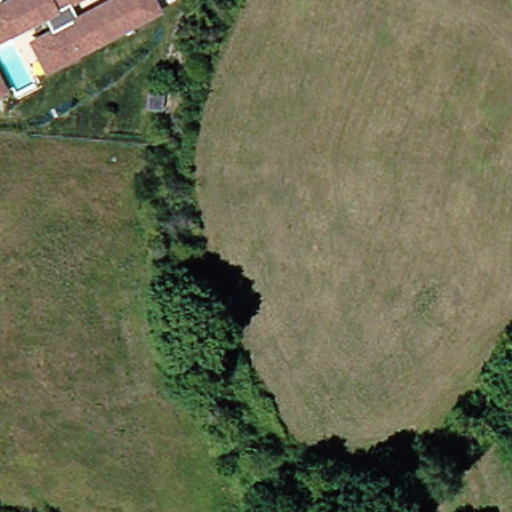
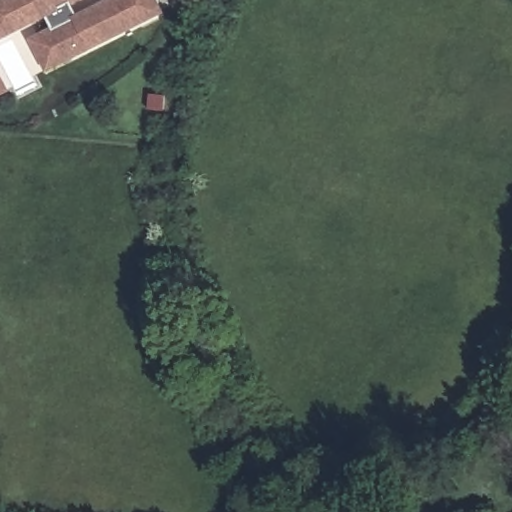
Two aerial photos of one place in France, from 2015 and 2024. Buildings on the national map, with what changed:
unchanged [(35,40),(42,37),(57,30),(50,15),(0,39),(0,7),(3,6),(2,2),(6,0),(80,0),(70,5),(77,20),(116,0),(157,0),(164,14),(144,24),(78,56),(50,70),(35,40)]
unchanged [(5,90),(0,92),(0,80),(5,90)]

